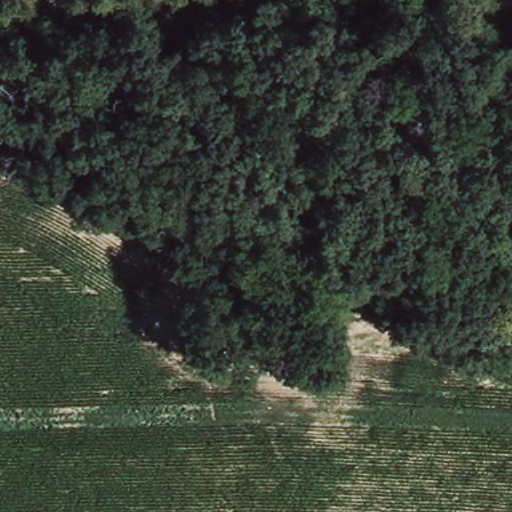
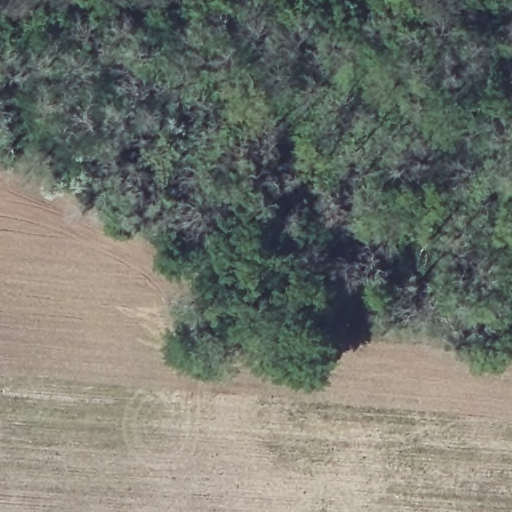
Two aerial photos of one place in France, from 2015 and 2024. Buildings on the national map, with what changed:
[]

